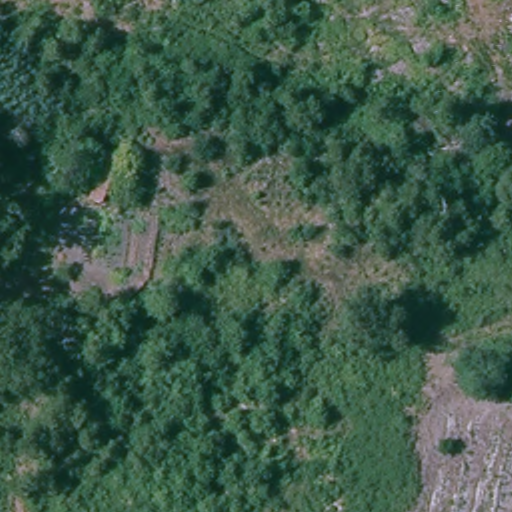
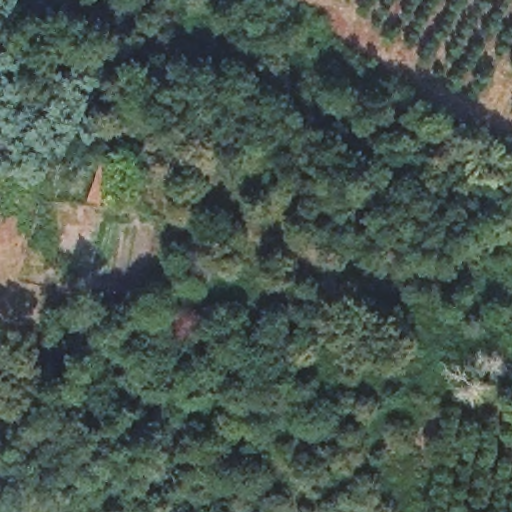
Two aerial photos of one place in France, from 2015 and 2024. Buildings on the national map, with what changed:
unchanged [(109,153),(128,159),(111,206),(92,199),(101,175),(109,153)]

